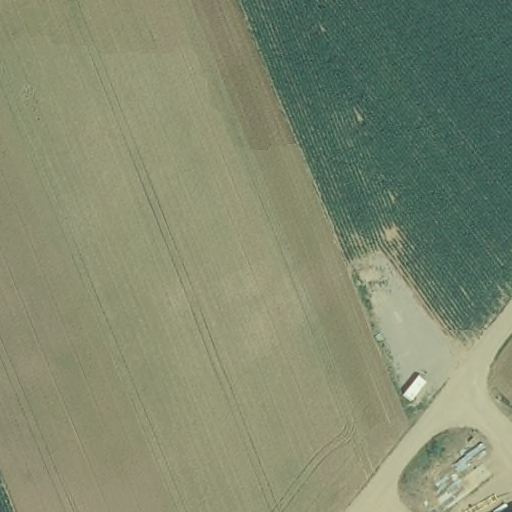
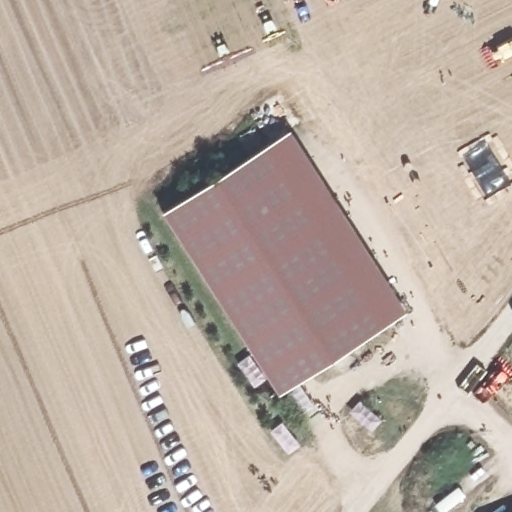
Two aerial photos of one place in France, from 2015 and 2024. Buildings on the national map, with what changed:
new [(277,394),(161,212),(289,130),(407,311),(277,394)]
new [(472,491),(445,512),(444,512),(435,502),(463,481),(472,491)]

